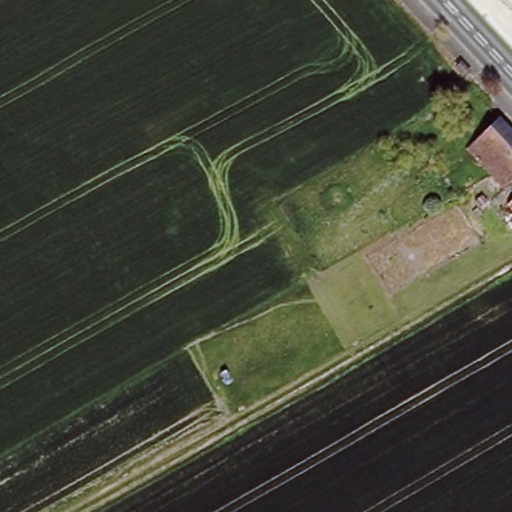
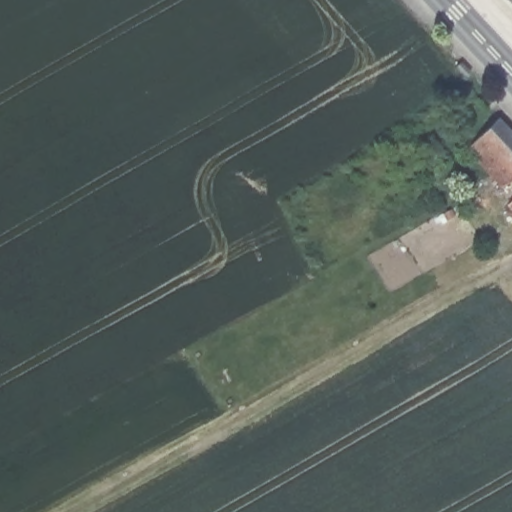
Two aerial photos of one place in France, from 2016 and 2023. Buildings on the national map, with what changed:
unchanged [(511,0),(512,0),(512,1),(511,0)]
unchanged [(502,119),(512,130),(512,173),(499,185),(493,179),(467,153),(502,119)]
unchanged [(503,189),(499,185),(512,173),(512,181),(503,189)]
unchanged [(511,204),(512,203),(512,205),(511,204)]

